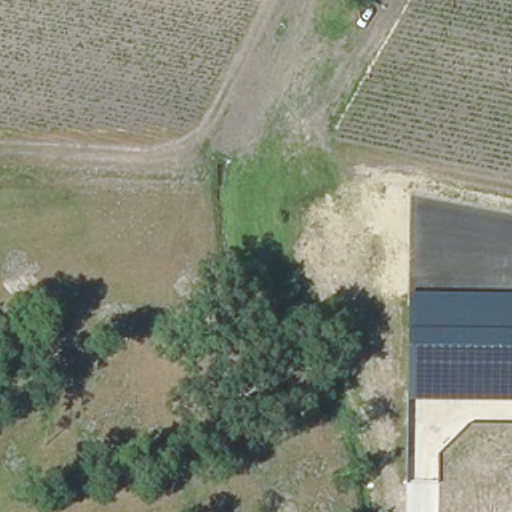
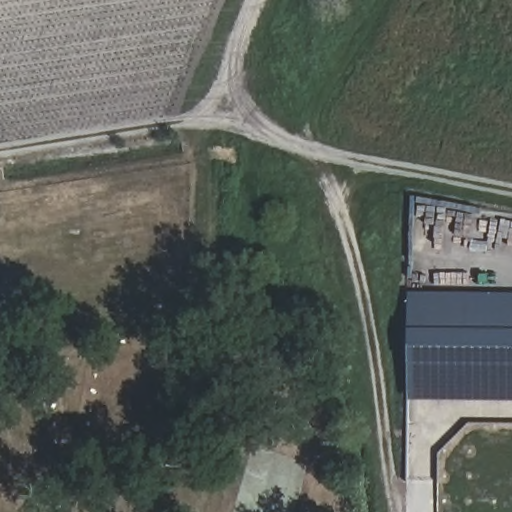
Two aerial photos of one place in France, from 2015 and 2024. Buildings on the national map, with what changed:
unchanged [(512,402),(409,400),(409,293),(512,294),(512,402)]

